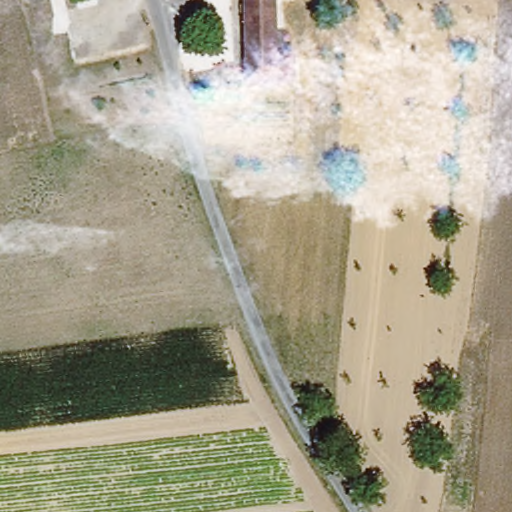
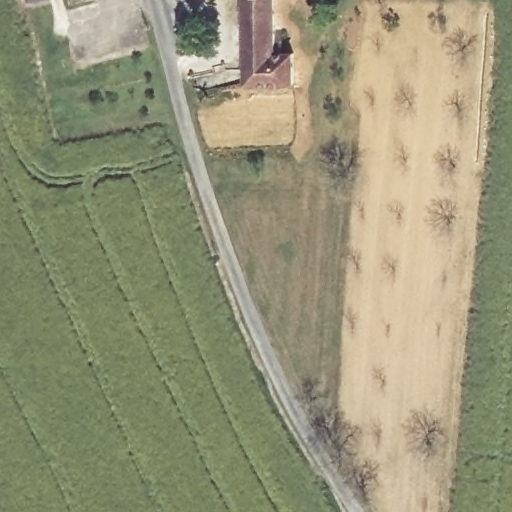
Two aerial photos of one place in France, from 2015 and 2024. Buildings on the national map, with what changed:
unchanged [(37,2),(36,0),(47,0),(37,2)]
unchanged [(244,0),(275,0),(274,56),(291,56),(291,76),(290,88),(241,85),(241,76),(244,0)]

